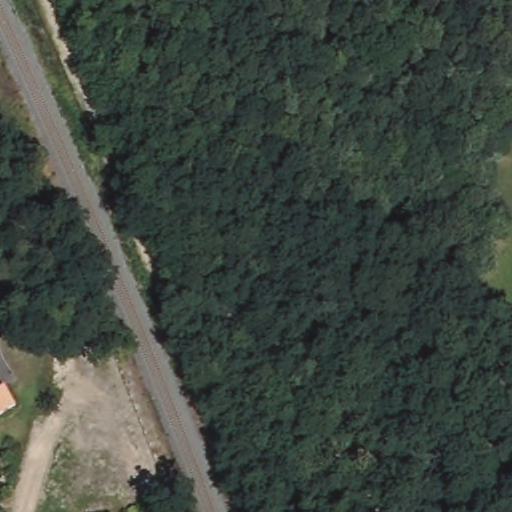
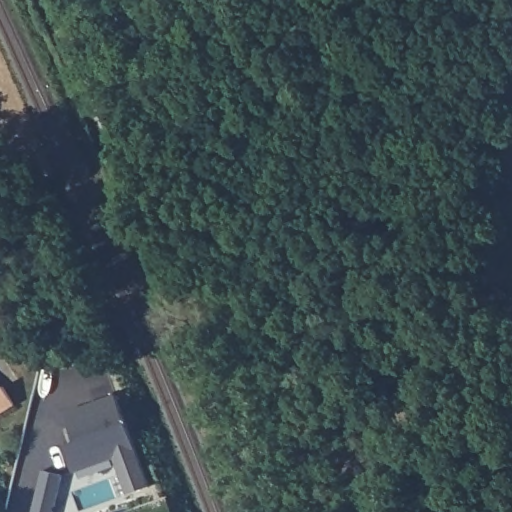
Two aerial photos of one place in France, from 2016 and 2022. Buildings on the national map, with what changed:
unchanged [(15,403),(0,413),(0,387),(3,384),(15,403)]
new [(62,405),(87,397),(114,389),(143,483),(121,490),(110,453),(68,466),(59,438),(71,435),(62,405)]
new [(61,475),(53,512),(32,512),(42,471),(61,475)]

